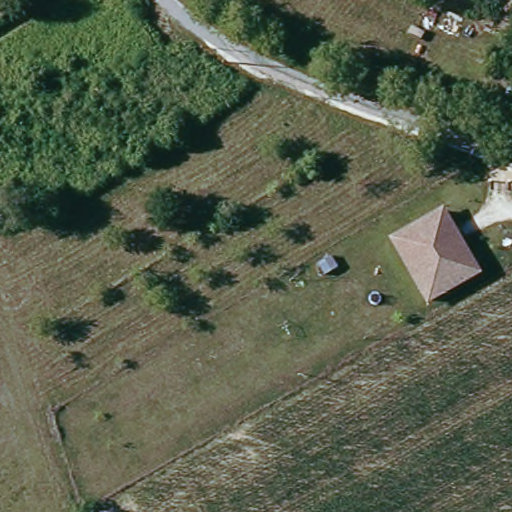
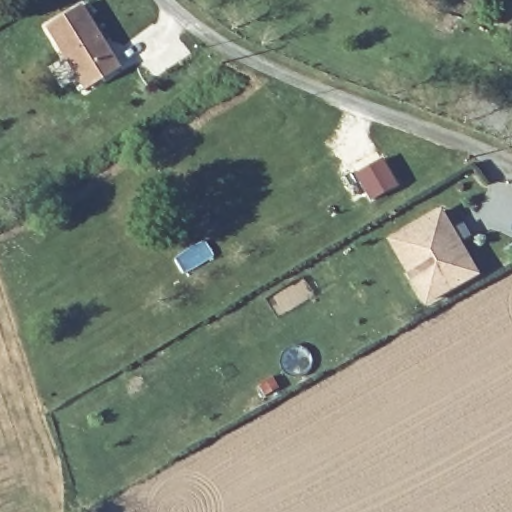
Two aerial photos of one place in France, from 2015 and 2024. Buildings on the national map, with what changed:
new [(121,68),(84,90),(44,26),(82,3),(121,68)]
unchanged [(481,270),(430,299),(412,268),(395,237),(412,227),(444,207),(481,270)]

